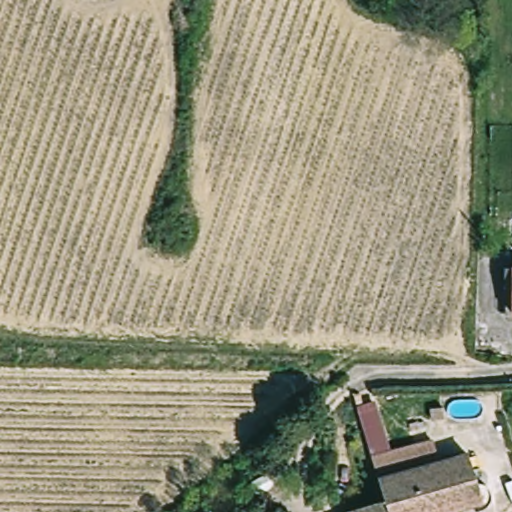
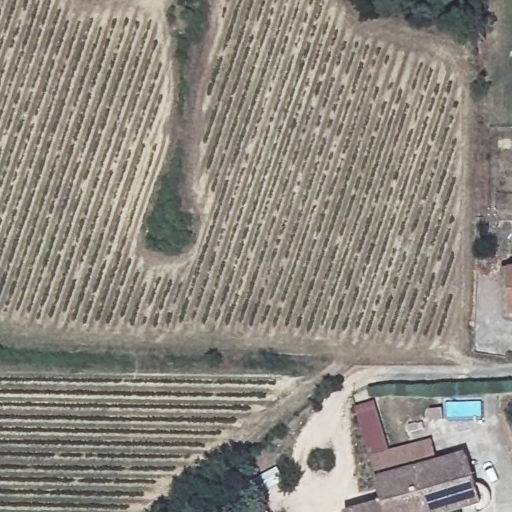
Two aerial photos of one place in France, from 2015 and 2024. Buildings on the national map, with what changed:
unchanged [(511,315),(511,270),(512,270),(512,315),(511,315)]
unchanged [(437,445),(444,466),(472,457),(487,503),(458,512),(392,512),(389,501),(383,484),(377,463),(437,445)]
unchanged [(392,512),(356,512),(389,501),(392,512)]

